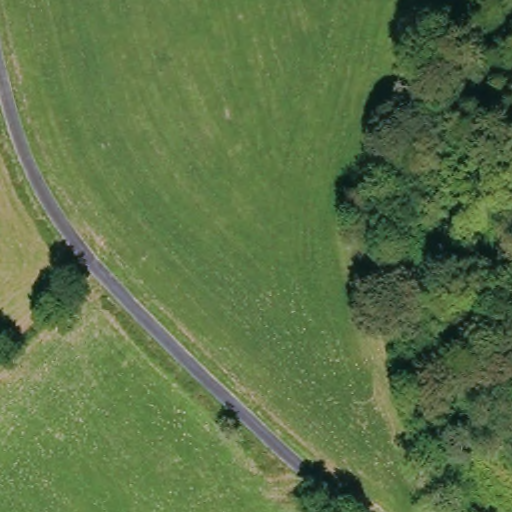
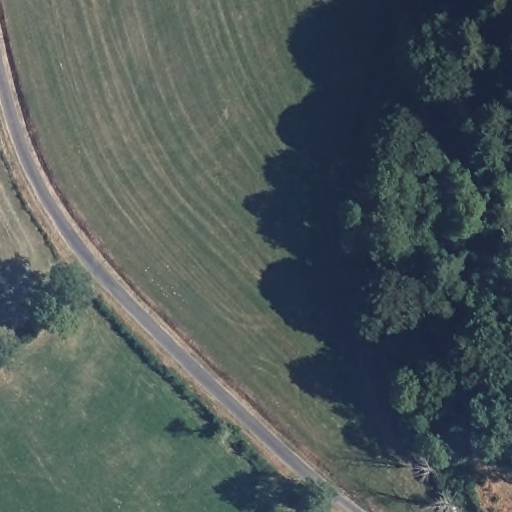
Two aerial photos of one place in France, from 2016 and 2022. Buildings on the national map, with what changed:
[]

